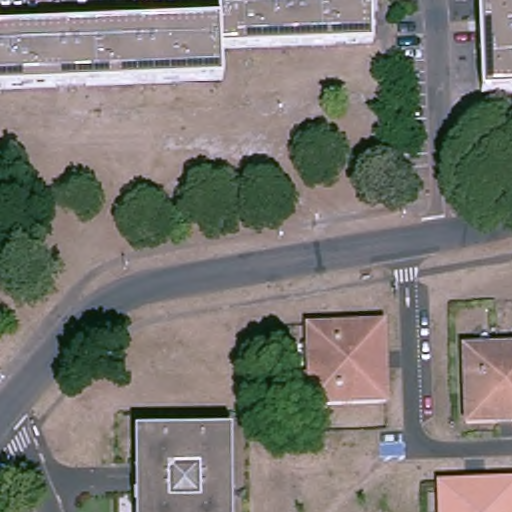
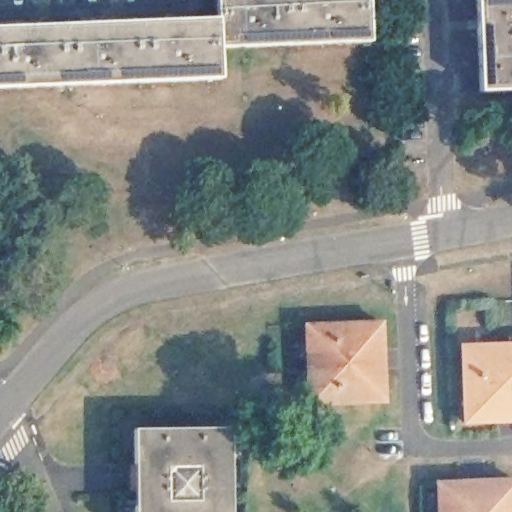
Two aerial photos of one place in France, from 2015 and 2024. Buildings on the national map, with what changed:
unchanged [(223,14),(223,0),(374,0),(375,35),(224,40),(225,75),(0,82),(0,23),(223,14)]
unchanged [(512,86),(481,87),(477,0),(512,0),(512,86)]
unchanged [(316,403),(314,372),(311,326),(384,325),(387,399),(316,403)]
unchanged [(471,349),(503,349),(512,348),(512,424),(473,425),(471,349)]
unchanged [(234,423),(237,512),(143,512),(141,424),(234,423)]
unchanged [(512,481),(512,512),(440,512),(439,484),(512,481)]

